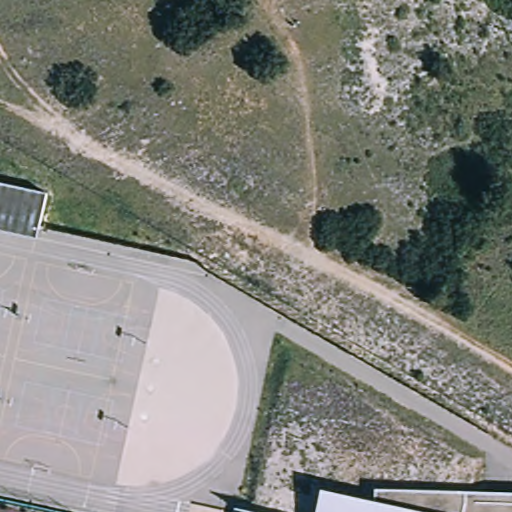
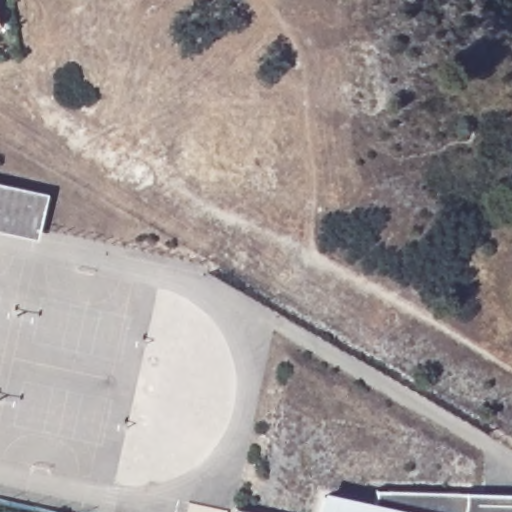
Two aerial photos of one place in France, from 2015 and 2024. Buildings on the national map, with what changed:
unchanged [(47,192),(40,228),(0,219),(0,182),(47,192)]
unchanged [(374,507),(374,490),(512,484),(512,512),(315,512),(321,492),(374,507)]
unchanged [(272,512),(245,512),(246,506),(272,512)]

